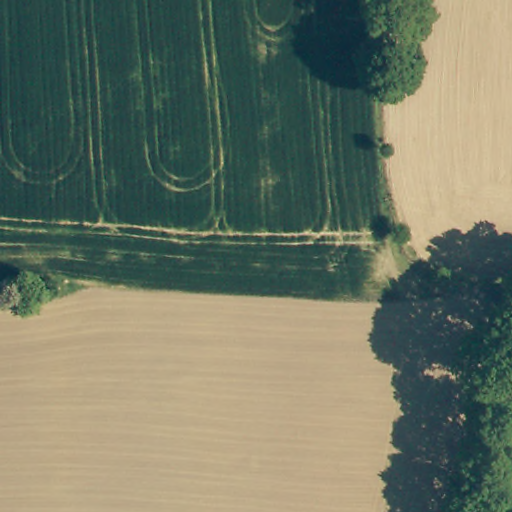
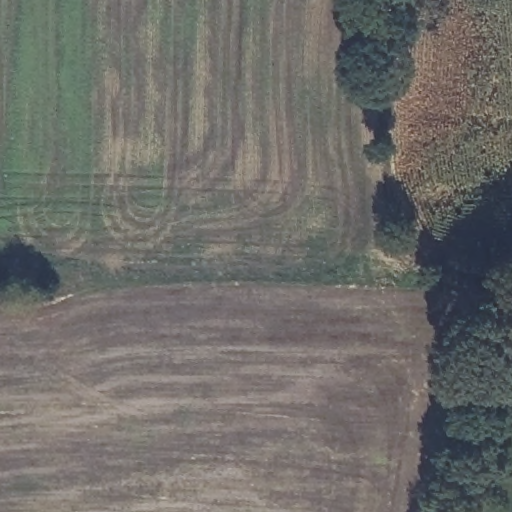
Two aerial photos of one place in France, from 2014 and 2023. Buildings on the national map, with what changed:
[]

